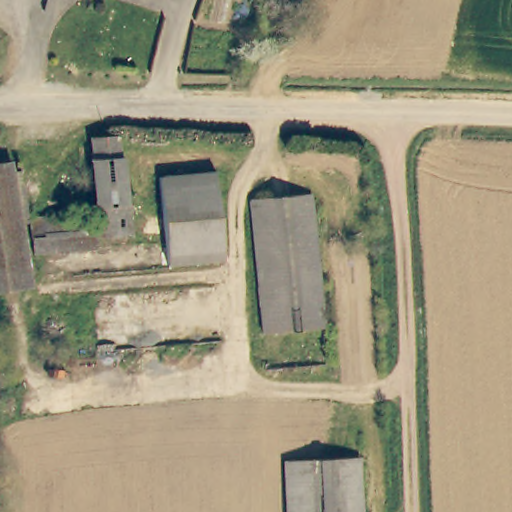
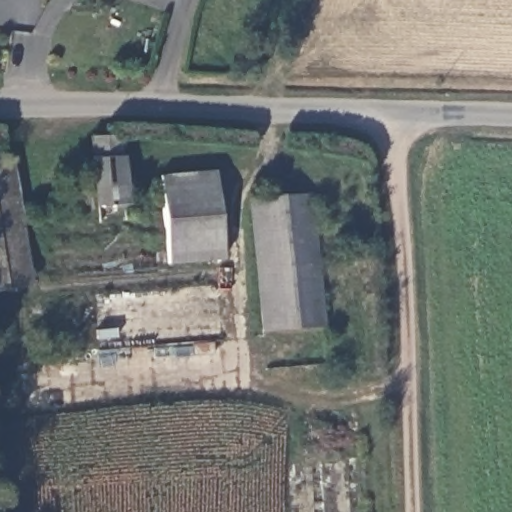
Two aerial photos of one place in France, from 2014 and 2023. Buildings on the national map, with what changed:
unchanged [(92,136),(119,135),(124,203),(97,205),(92,136)]
unchanged [(165,259),(158,179),(212,172),(219,253),(165,259)]
unchanged [(0,178),(17,285),(0,289),(0,178)]
unchanged [(264,332),(251,197),(313,191),(324,326),(264,332)]
unchanged [(124,203),(128,202),(129,208),(130,234),(94,238),(92,210),(92,206),(97,205),(124,203)]
unchanged [(94,244),(34,251),(31,217),(92,210),(94,238),(94,244)]
demolished [(355,457),(357,512),(285,512),(283,462),(355,457)]

